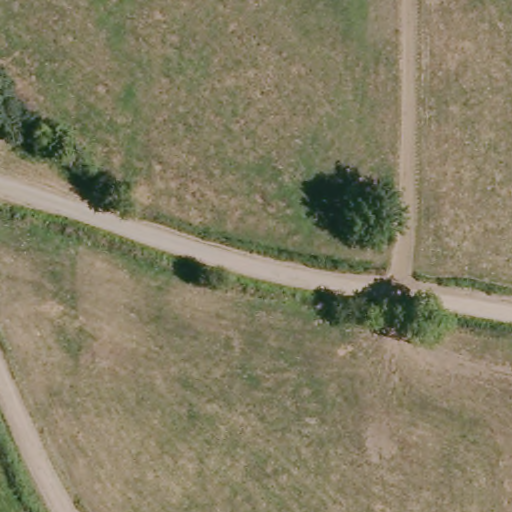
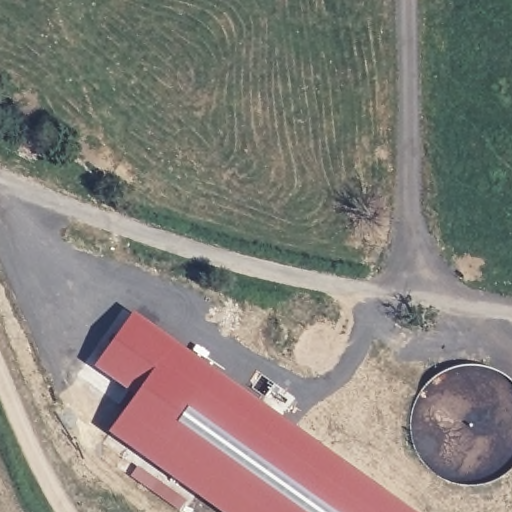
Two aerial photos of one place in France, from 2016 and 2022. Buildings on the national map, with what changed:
new [(135,401),(93,366),(137,305),(419,512),(222,512),(112,432),(135,401)]

